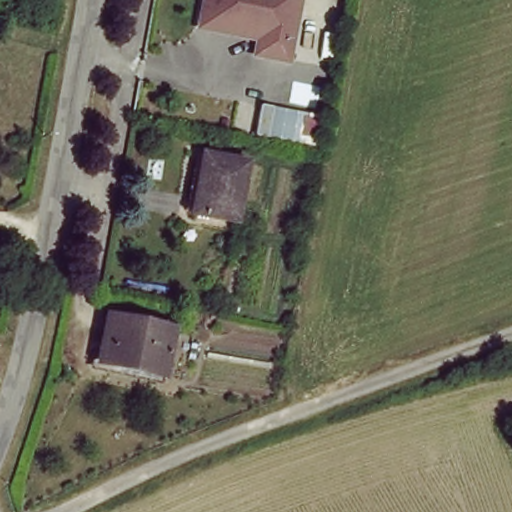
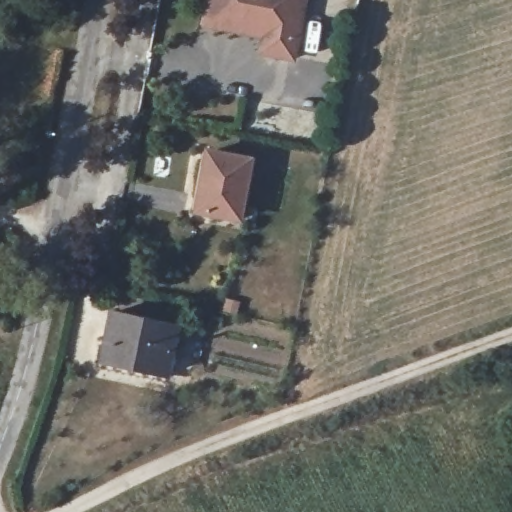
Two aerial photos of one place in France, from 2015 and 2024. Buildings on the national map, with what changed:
unchanged [(299,59),(259,52),(262,33),(207,23),(210,0),(308,0),(299,59)]
unchanged [(256,164),(247,224),(205,219),(215,159),(256,164)]
unchanged [(178,328),(174,373),(107,365),(113,319),(178,328)]

